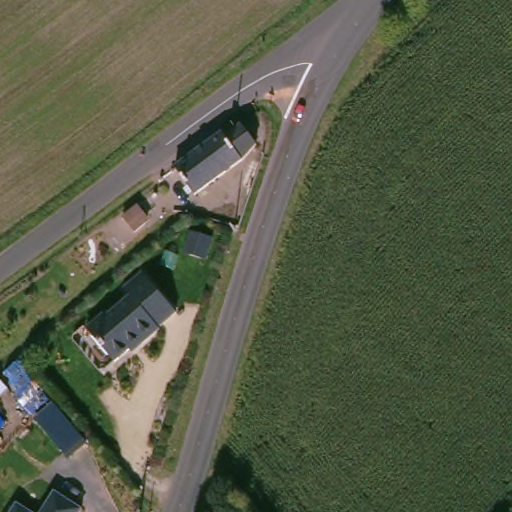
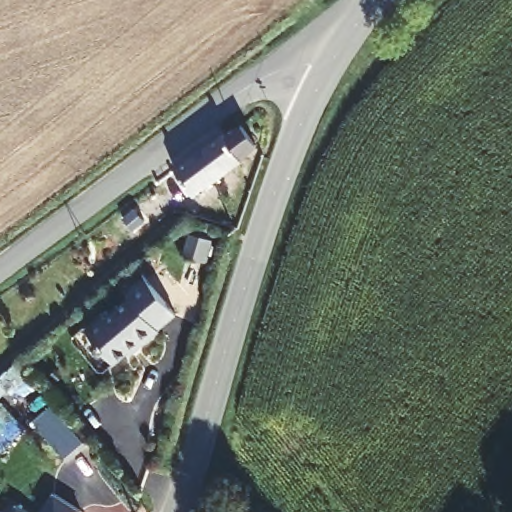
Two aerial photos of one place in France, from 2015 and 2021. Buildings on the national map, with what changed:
unchanged [(202,190),(180,164),(222,131),(230,140),(248,122),(261,139),(229,167),(202,190)]
unchanged [(147,235),(134,244),(123,229),(135,220),(147,235)]
unchanged [(141,333),(115,354),(88,321),(107,306),(109,309),(134,290),(127,281),(146,266),(178,306),(160,321),(161,322),(144,337),(141,333)]
unchanged [(54,403),(89,443),(69,461),(35,420),(54,403)]
unchanged [(54,492),(82,507),(79,512),(43,512),(54,492)]
unchanged [(28,512),(7,512),(12,503),(28,512)]

